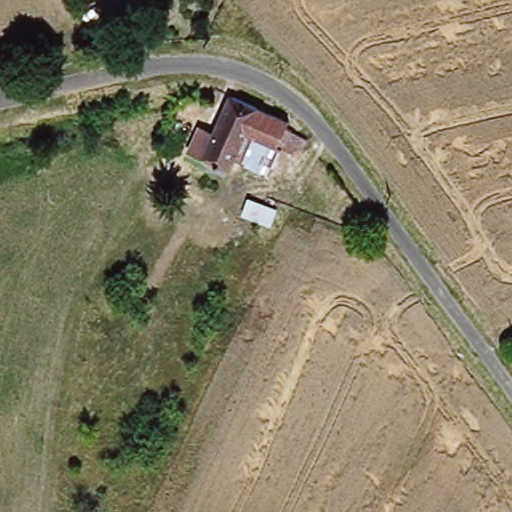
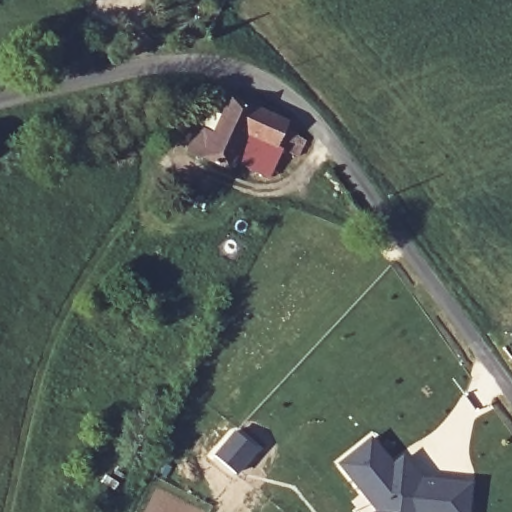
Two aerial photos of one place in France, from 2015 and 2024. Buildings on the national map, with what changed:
unchanged [(231,161),(226,172),(187,151),(198,129),(212,136),(227,102),(248,105),(289,127),(285,132),(306,144),(296,162),(276,151),(264,177),(231,161)]
new [(372,435),(393,460),(404,452),(406,455),(423,473),(474,480),(471,512),(372,512),(374,510),(337,463),(372,435)]

